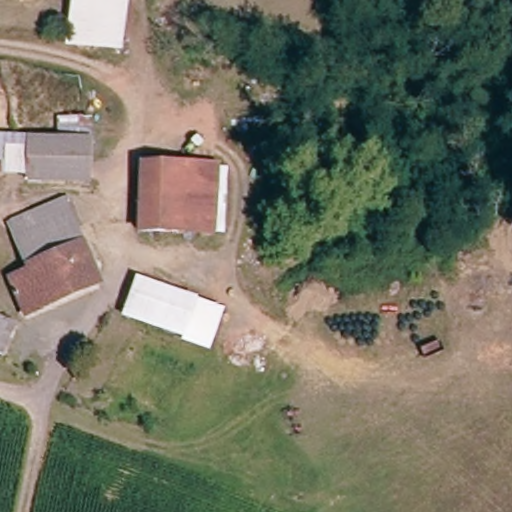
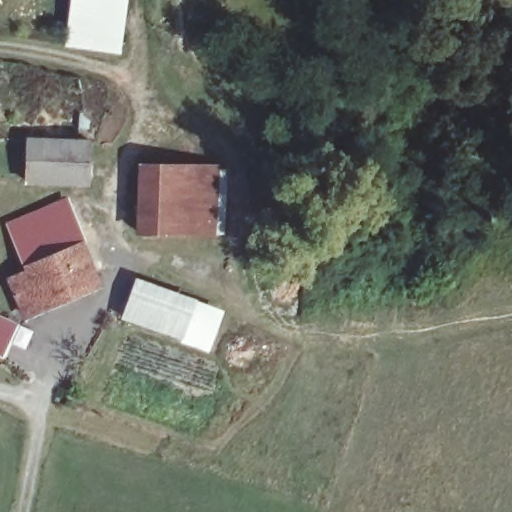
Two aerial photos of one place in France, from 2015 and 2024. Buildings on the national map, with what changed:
unchanged [(111,4),(110,58),(70,58),(71,4),(111,4)]
unchanged [(82,140),(80,185),(0,181),(0,136),(82,140)]
unchanged [(177,236),(139,236),(139,165),(177,166),(177,236)]
unchanged [(218,166),(217,235),(177,236),(177,166),(218,166)]
unchanged [(68,202),(87,245),(33,268),(14,221),(68,202)]
unchanged [(33,268),(87,245),(105,285),(30,315),(15,275),(33,268)]
unchanged [(195,302),(180,340),(123,316),(137,279),(195,302)]
unchanged [(13,329),(0,356),(0,323),(13,329)]

